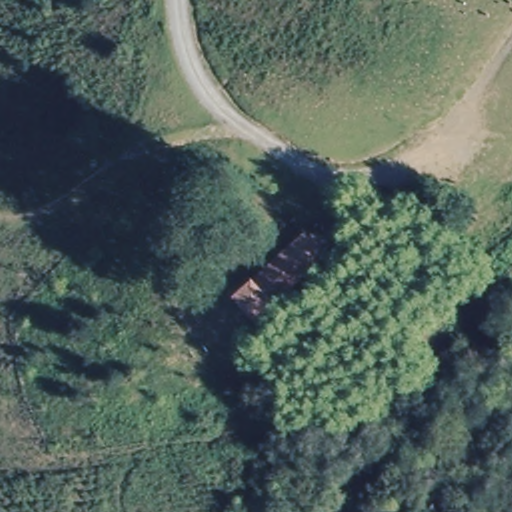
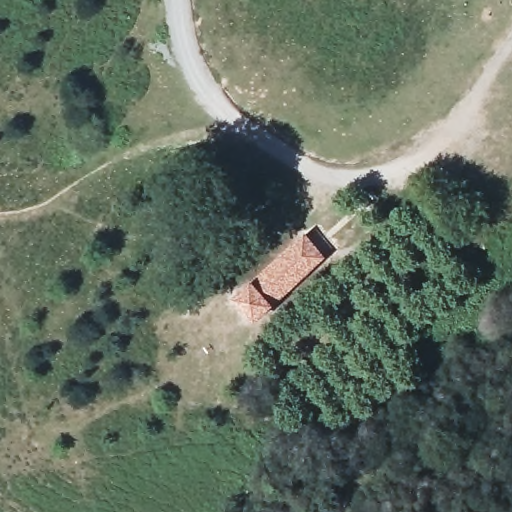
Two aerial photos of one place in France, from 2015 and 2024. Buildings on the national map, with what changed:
unchanged [(230,300),(290,250),(301,240),(320,262),(309,271),(247,322),(230,300)]

